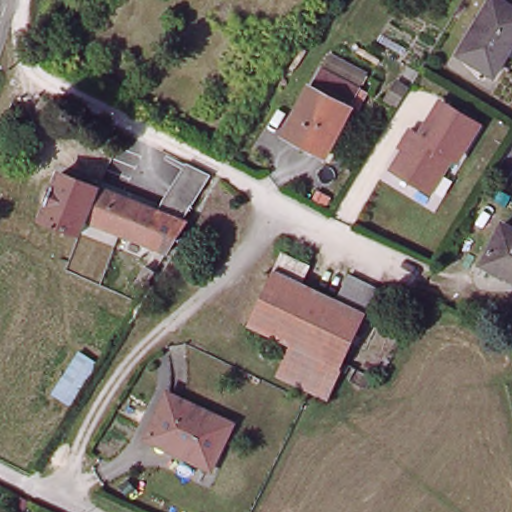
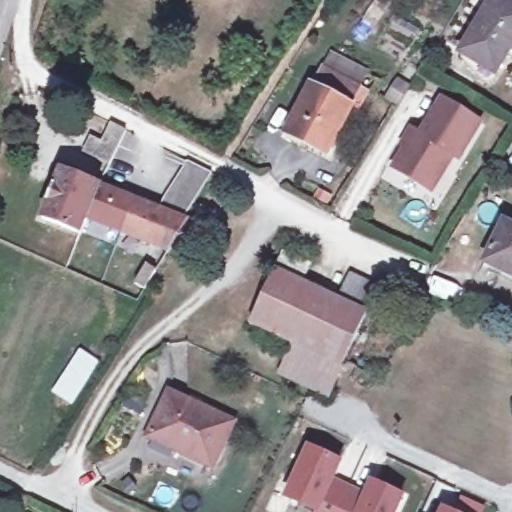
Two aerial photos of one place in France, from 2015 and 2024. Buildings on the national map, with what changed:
unchanged [(493,0),(502,0),(512,6),(512,47),(494,77),(482,76),(470,64),(472,60),(462,54),(493,0)]
unchanged [(357,90),(325,153),(285,132),(318,69),(357,90)]
unchanged [(448,105),(472,122),(450,155),(455,159),(432,194),(397,170),(412,148),(406,145),(415,132),(420,135),(425,139),(448,105)]
new [(104,144),(114,124),(130,131),(120,151),(112,166),(85,153),(93,138),(104,144)]
unchanged [(187,161),(210,174),(180,220),(156,210),(187,161)]
unchanged [(85,220),(79,235),(40,220),(59,172),(156,210),(180,220),(176,226),(182,229),(167,252),(85,220)]
unchanged [(512,224),(512,269),(510,267),(507,271),(488,261),(507,221),(512,224)]
unchanged [(376,291),(326,399),(280,378),(292,351),(246,330),(280,256),(306,268),(299,285),(335,303),(347,277),(376,291)]
unchanged [(143,266),(155,273),(143,291),(131,285),(143,266)]
unchanged [(231,425),(206,466),(172,445),(176,438),(151,423),(173,388),(231,425)]
new [(308,445),(339,460),(330,478),(347,486),(335,512),(314,512),(315,509),(285,495),(308,445)]
new [(365,494),(371,480),(401,495),(393,512),(335,512),(347,486),(365,494)]
new [(451,512),(441,512),(442,508),(451,512)]

